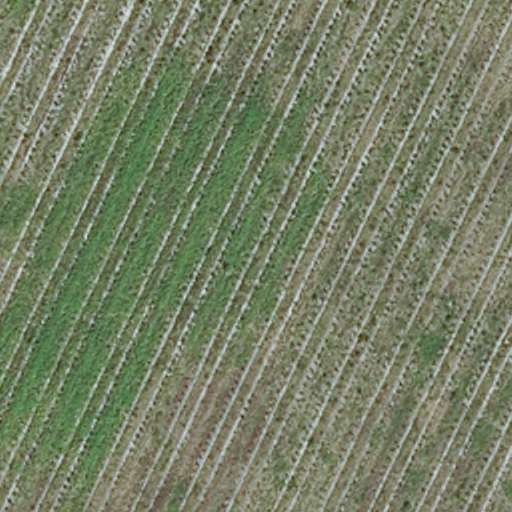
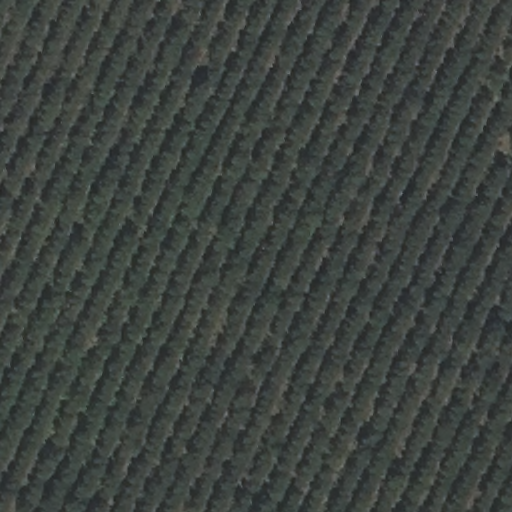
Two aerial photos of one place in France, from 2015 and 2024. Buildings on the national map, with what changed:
[]

